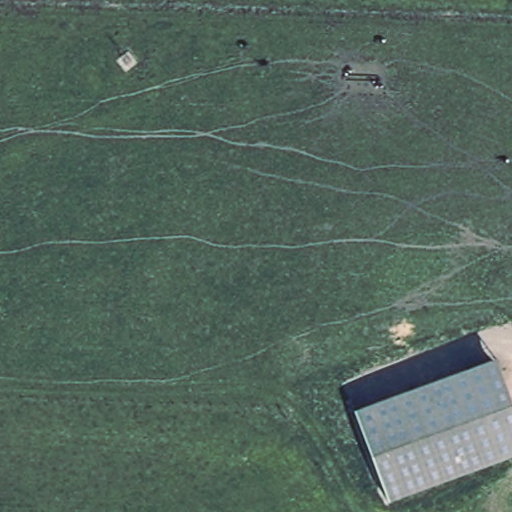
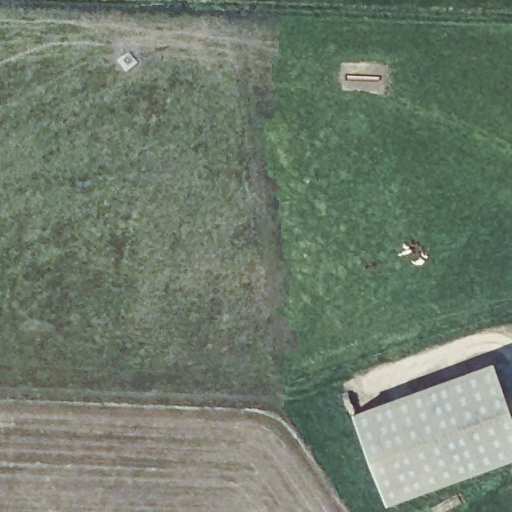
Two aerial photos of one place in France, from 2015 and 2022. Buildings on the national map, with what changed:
unchanged [(512,403),(512,456),(387,502),(354,413),(495,360),(512,403)]

